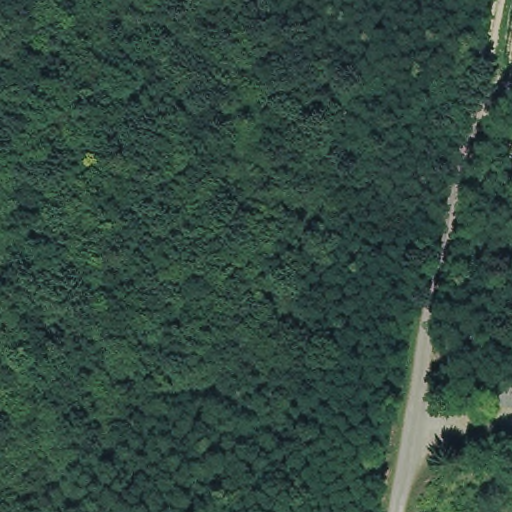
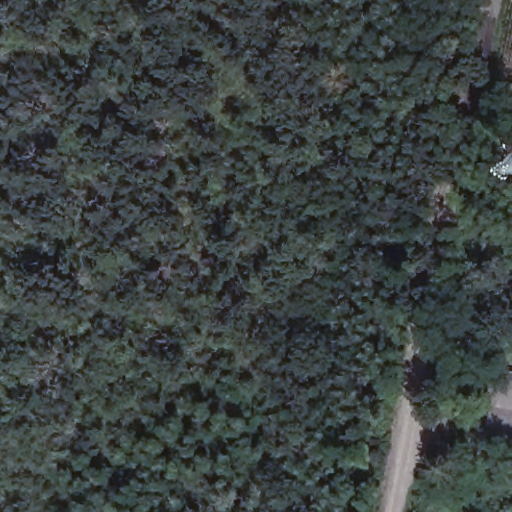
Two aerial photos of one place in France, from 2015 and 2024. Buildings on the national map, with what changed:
unchanged [(512,377),(512,408),(485,403),(490,373),(512,377)]

